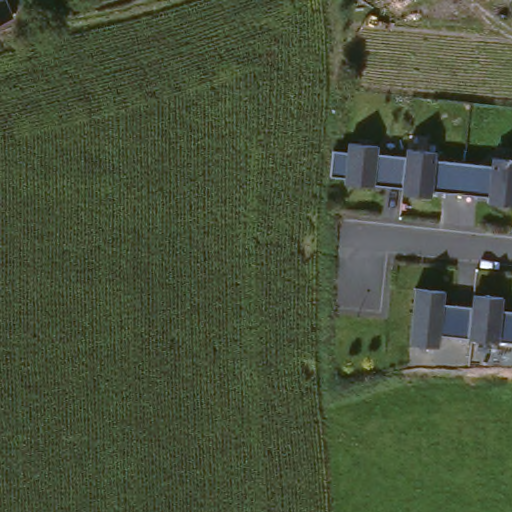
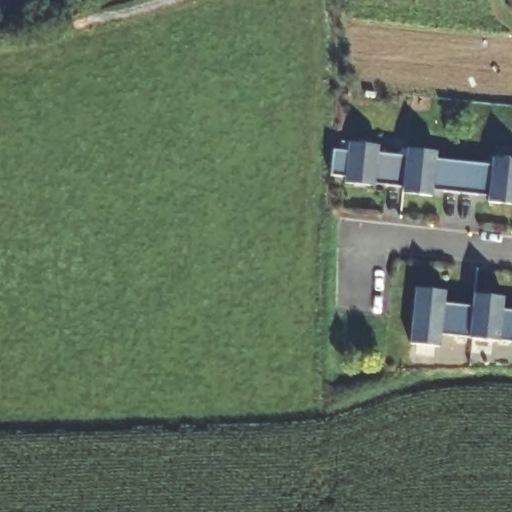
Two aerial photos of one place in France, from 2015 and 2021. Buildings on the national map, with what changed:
unchanged [(0,20),(0,0),(2,0),(10,16),(0,20)]
unchanged [(328,152),(344,154),(345,145),(374,148),(373,157),(402,160),(403,151),(432,154),(432,163),(490,169),(491,160),(512,163),(512,208),(486,204),(487,199),(429,192),(428,198),(399,195),(400,189),(370,186),(370,187),(340,184),(341,178),(327,177),(328,154),(328,152)]
unchanged [(441,289),(440,300),(470,303),(471,291),(501,294),(500,306),(512,307),(512,340),(437,333),(436,344),(406,341),(411,286),(441,289)]

